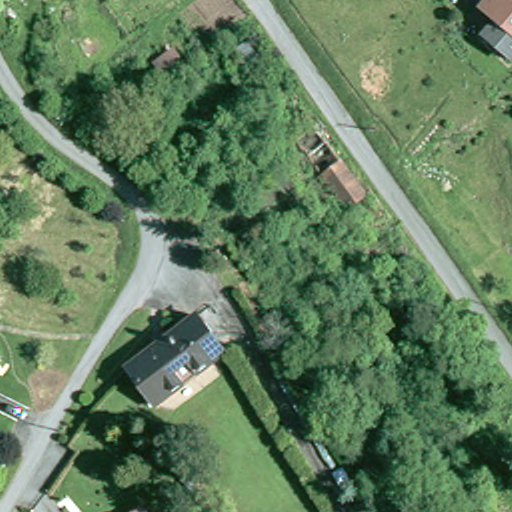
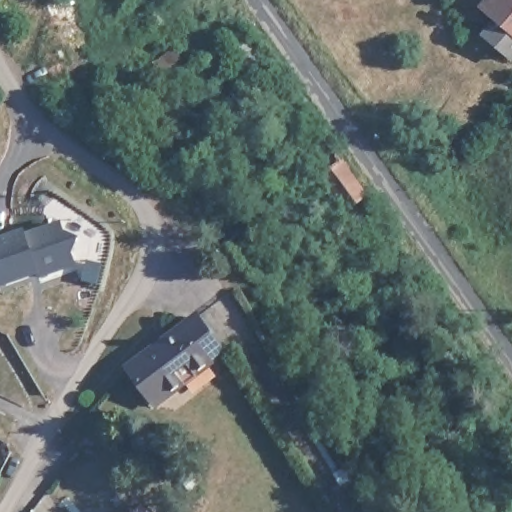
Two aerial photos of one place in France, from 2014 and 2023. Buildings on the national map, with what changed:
unchanged [(0,0),(13,0),(0,10),(0,0)]
unchanged [(488,40),(502,24),(490,13),(501,0),(512,0),(512,60),(488,40)]
unchanged [(234,67),(244,60),(238,51),(251,42),(265,62),(252,71),(242,78),(234,67)]
unchanged [(170,52),(184,71),(168,82),(155,64),(170,52)]
unchanged [(268,120),(297,99),(315,124),(320,121),(334,139),(329,142),(342,161),(322,177),(313,184),(268,120)]
unchanged [(342,161),(367,196),(347,210),(322,177),(342,161)]
new [(82,236),(74,253),(77,263),(40,276),(40,272),(0,285),(0,236),(25,227),(27,231),(62,219),(66,229),(82,236)]
unchanged [(155,405),(129,367),(198,317),(225,353),(155,405)]

